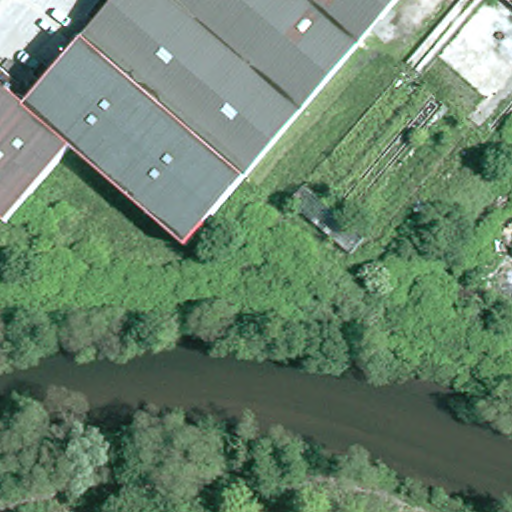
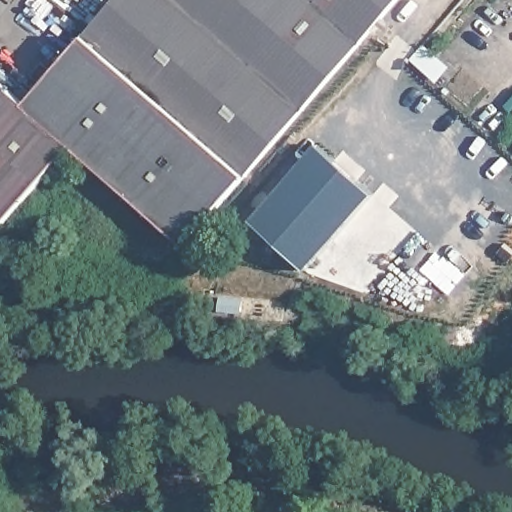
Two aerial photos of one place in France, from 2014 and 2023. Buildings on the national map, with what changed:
unchanged [(76,146),(11,224),(0,214),(0,81),(29,106),(120,0),(247,0),(102,168),(76,146)]
unchanged [(401,0),(189,243),(102,168),(247,0),(401,0)]
new [(252,221),(319,145),(375,195),(309,270),(252,221)]

